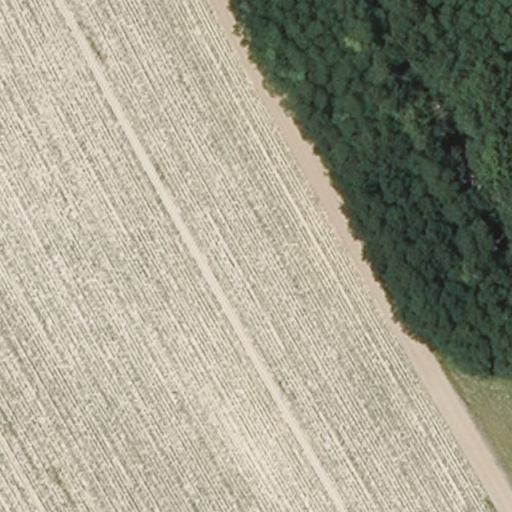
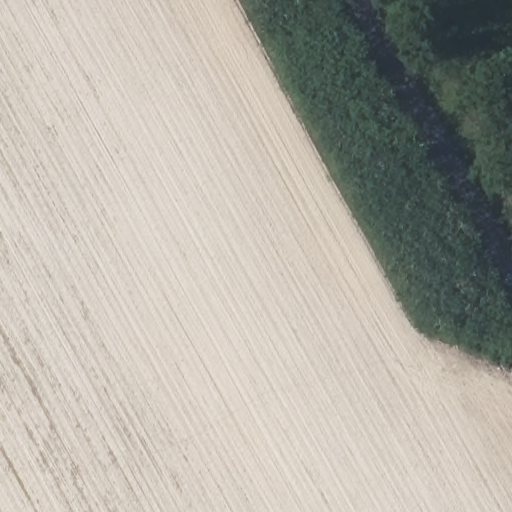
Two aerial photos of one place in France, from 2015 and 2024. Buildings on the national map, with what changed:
[]

